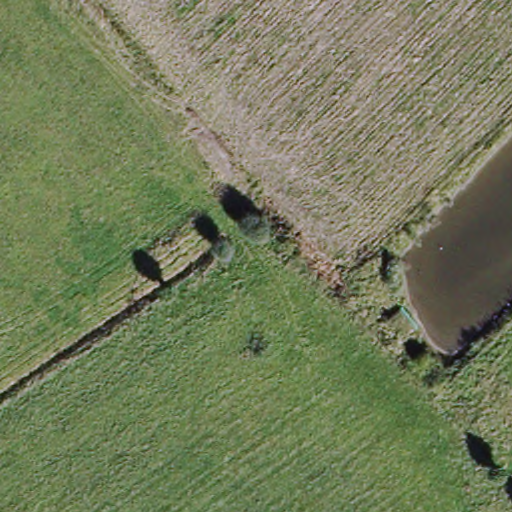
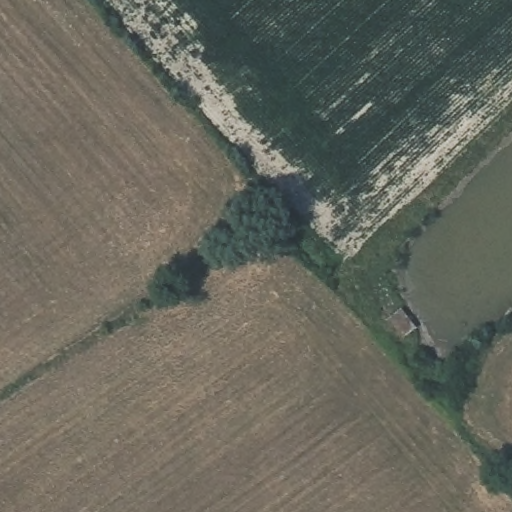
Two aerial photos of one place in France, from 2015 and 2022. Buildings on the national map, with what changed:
unchanged [(380,320),(396,308),(410,328),(396,339),(380,320)]

